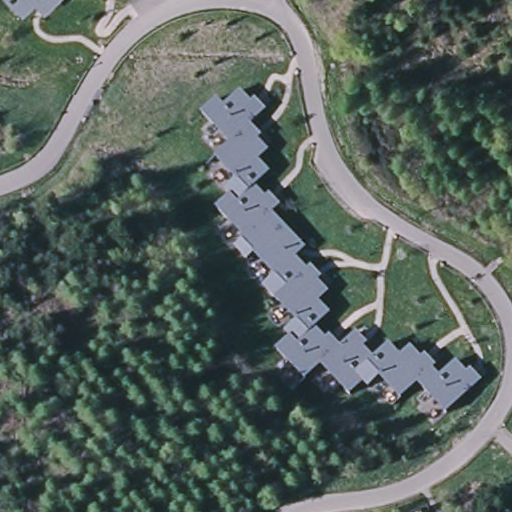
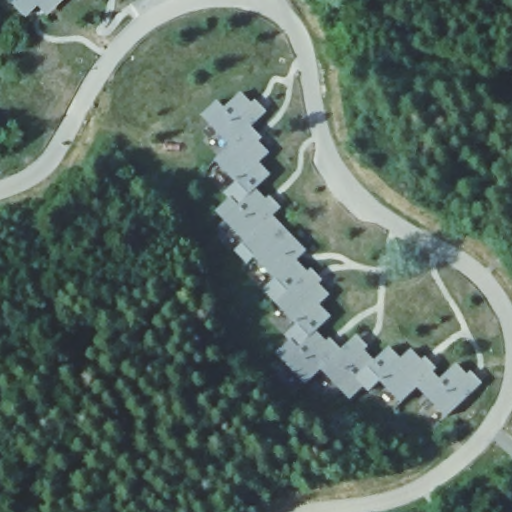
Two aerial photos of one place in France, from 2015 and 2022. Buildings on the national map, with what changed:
unchanged [(40,9),(35,4),(23,15),(9,0),(60,0),(54,6),(53,5),(47,10),(43,6),(40,9)]
unchanged [(219,114),(235,98),(247,110),(252,105),(257,109),(263,102),(268,107),(260,116),(255,111),(251,114),(257,121),(242,135),(227,150),(197,119),(212,106),(219,114)]
unchanged [(232,186),(211,164),(227,150),(242,135),(248,141),(253,136),(257,141),(260,138),(268,146),(263,151),(255,143),(252,146),(263,158),(253,168),(265,180),(250,194),(233,209),(227,202),(226,202),(221,197),(232,186)]
unchanged [(226,202),(227,202),(233,209),(250,194),(262,206),(267,201),(271,205),(277,199),(282,204),(274,212),(269,207),(265,210),(272,217),(267,221),(242,246),(241,246),(212,216),(226,202)]
unchanged [(271,283),(250,262),(244,268),(232,255),(241,246),(242,246),(267,221),(292,248),(297,254),(292,258),(296,261),(291,266),(302,278),(272,307),(260,294),(271,283)]
unchanged [(325,322),(310,336),(294,352),(287,344),(282,339),(293,328),(272,307),(302,278),(308,284),(313,279),(317,283),(321,280),(330,289),(324,293),(316,285),(312,288),(324,300),(313,310),(325,322)]
unchanged [(338,395),(317,373),(332,359),(347,344),(354,350),(357,347),(352,342),(361,334),(365,339),(359,345),(363,349),(358,355),(370,366),(370,367),(353,383),(360,391),(347,404),(338,395)]
unchanged [(302,388),(273,357),(287,344),(294,352),(310,336),(322,348),(327,343),(332,347),(338,341),(343,346),(335,354),(330,349),(326,352),(332,359),(317,373),(304,386),(302,388)]
unchanged [(395,364),(405,354),(417,367),(422,362),(427,366),(433,360),(438,365),(430,373),(425,368),(422,371),(427,378),(413,391),(397,407),(376,385),(365,395),(360,391),(353,383),(370,367),(370,366),(384,352),(395,364)]
unchanged [(413,391),(427,378),(435,385),(451,369),(462,381),(468,376),(472,380),(478,374),(483,379),(475,387),(470,382),(467,385),(473,392),(442,421),(421,399),(413,391)]

